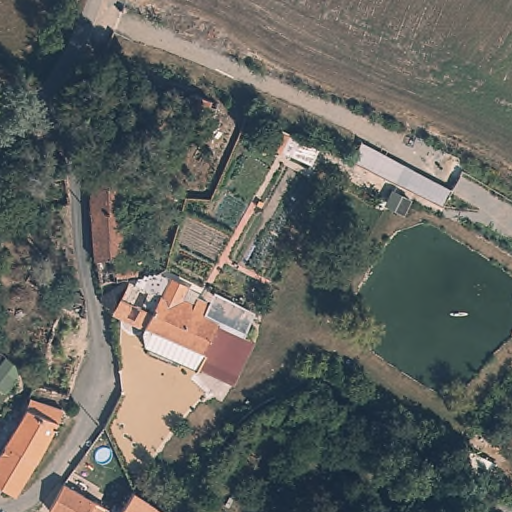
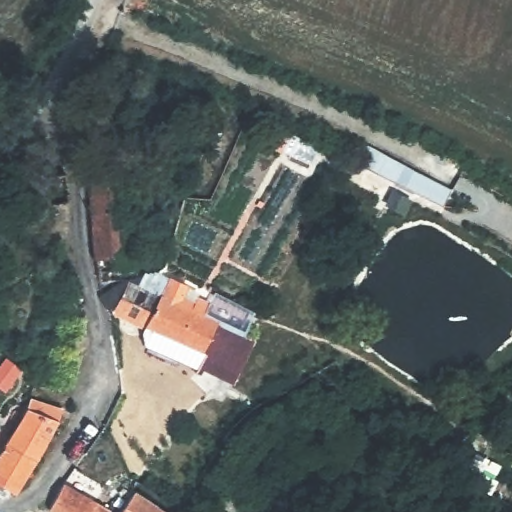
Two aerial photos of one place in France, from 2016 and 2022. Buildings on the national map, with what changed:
unchanged [(205,116),(193,112),(199,96),(211,100),(205,116)]
unchanged [(280,150),(262,142),(270,125),(288,133),(280,150)]
unchanged [(442,209),(352,165),(362,144),(452,190),(442,209)]
unchanged [(132,266),(130,266),(130,269),(101,270),(99,270),(95,220),(95,170),(128,170),(130,210),(132,266)]
unchanged [(70,204),(47,205),(44,175),(65,174),(66,174),(70,204)]
unchanged [(46,278),(32,270),(41,257),(54,266),(46,278)]
unchanged [(217,361),(212,368),(202,362),(205,357),(150,332),(112,312),(107,305),(106,303),(106,301),(107,300),(112,297),(118,295),(124,292),(126,291),(131,285),(137,285),(142,282),(148,282),(163,277),(164,278),(174,283),(192,292),(190,298),(214,309),(219,300),(254,318),(242,338),(234,333),(218,361),(217,361)]
unchanged [(13,494),(0,486),(0,452),(4,445),(26,408),(29,399),(61,410),(57,421),(43,447),(35,460),(15,493),(13,494)]
unchanged [(54,510),(67,484),(99,502),(99,501),(116,511),(116,512),(57,512),(54,510)]
unchanged [(139,492),(168,512),(125,512),(139,492)]

